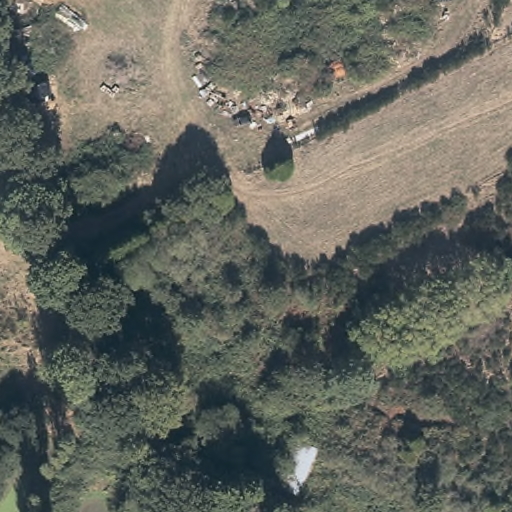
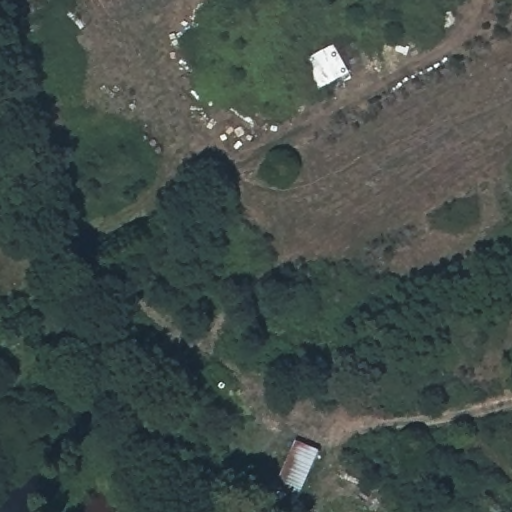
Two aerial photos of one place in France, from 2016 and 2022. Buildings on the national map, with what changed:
unchanged [(300,496),(272,487),(293,440),(323,449),(300,496)]

